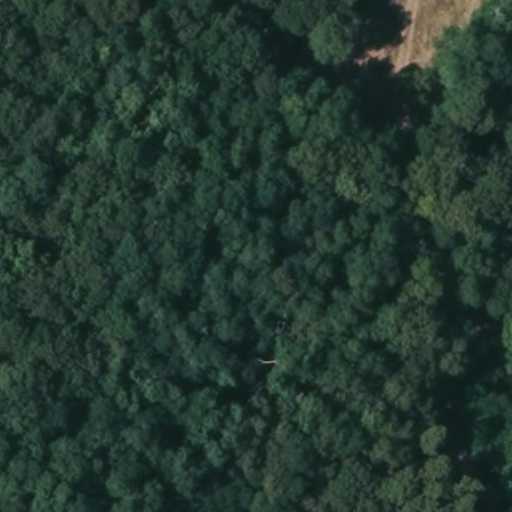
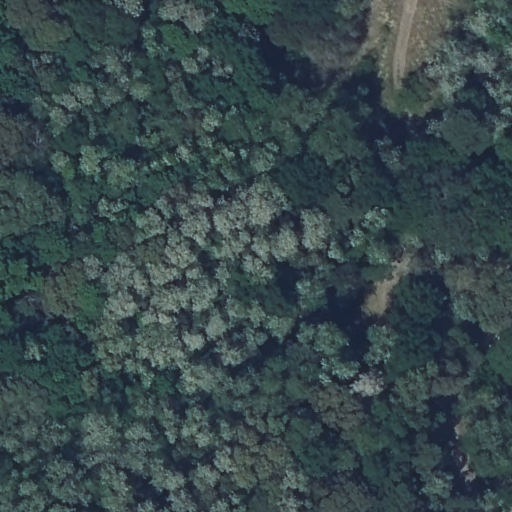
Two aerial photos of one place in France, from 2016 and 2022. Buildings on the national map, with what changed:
unchanged [(512,245),(512,275),(483,266),(493,240),(512,245)]

